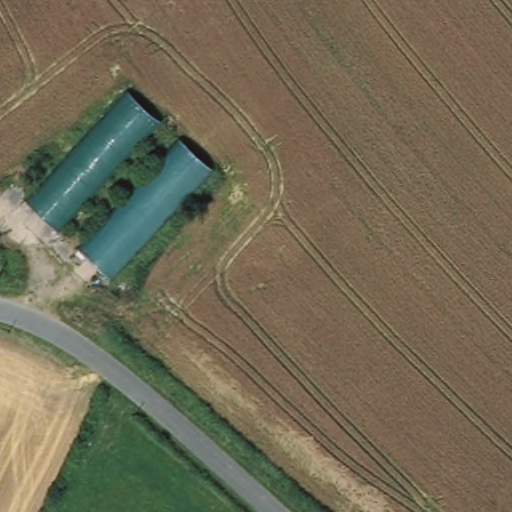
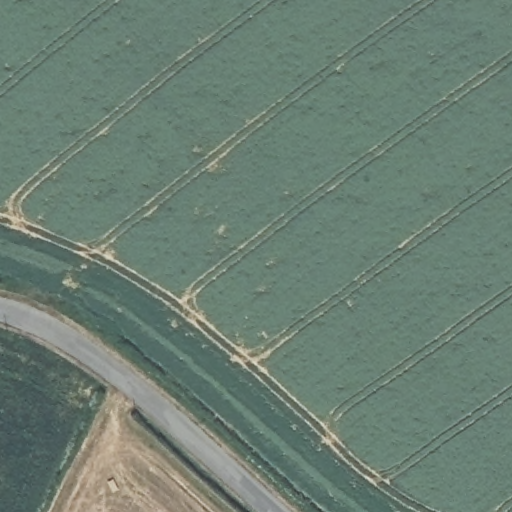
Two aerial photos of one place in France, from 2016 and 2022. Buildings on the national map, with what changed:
demolished [(119,90),(155,123),(55,233),(19,199),(119,90)]
demolished [(172,140),(206,171),(105,281),(72,249),(172,140)]

